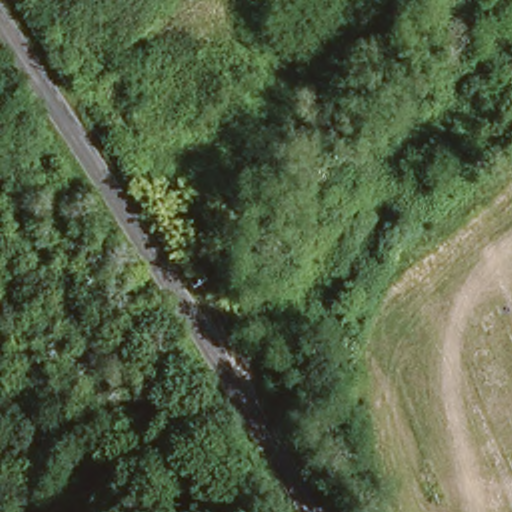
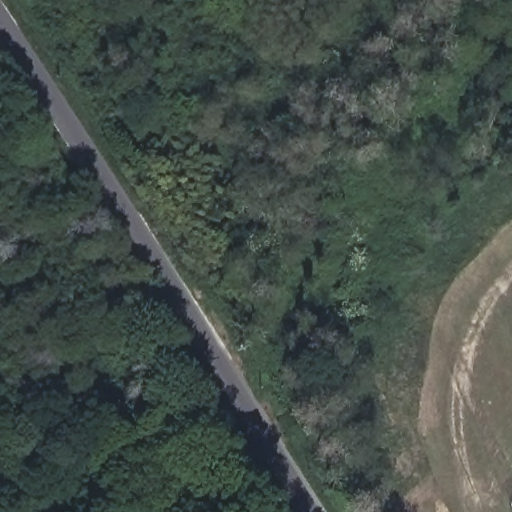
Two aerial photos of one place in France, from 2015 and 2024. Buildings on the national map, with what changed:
[]

